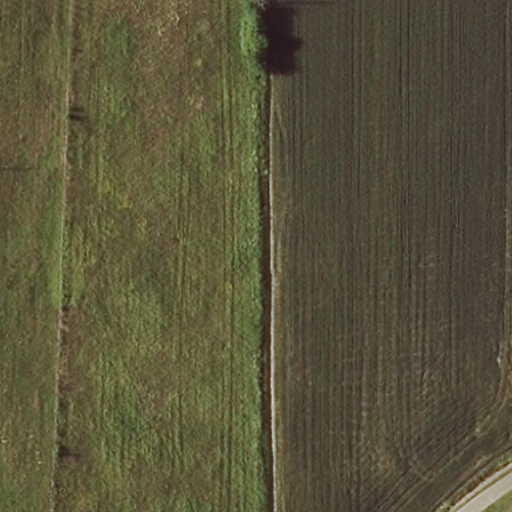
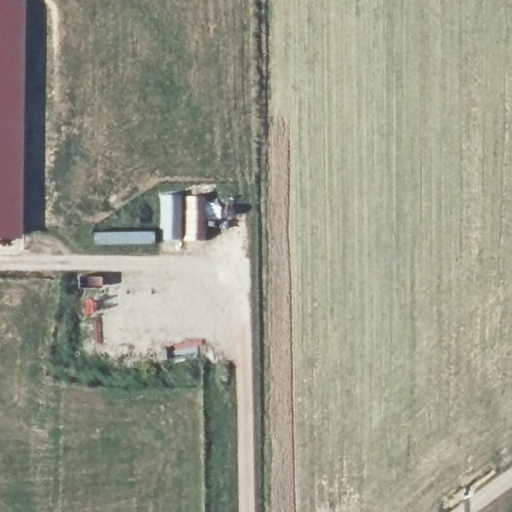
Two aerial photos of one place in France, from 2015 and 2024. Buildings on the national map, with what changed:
new [(26,0),(22,239),(0,239),(0,0),(26,0)]

